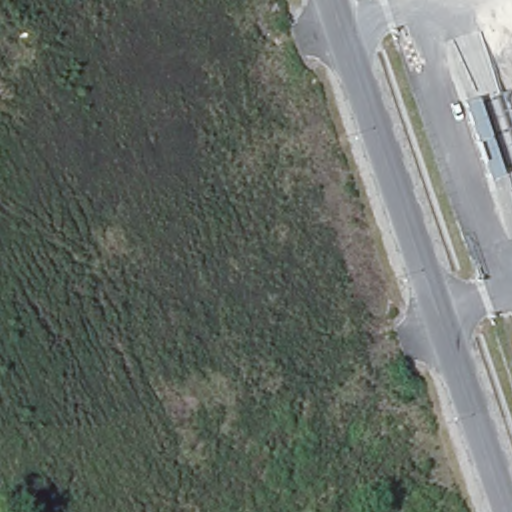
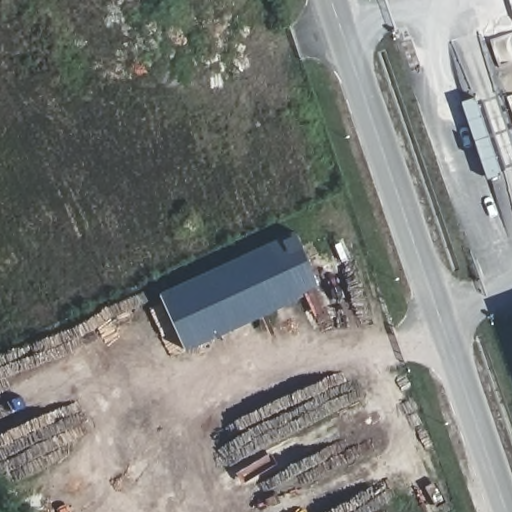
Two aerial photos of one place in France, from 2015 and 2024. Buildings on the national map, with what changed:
new [(474,95),(500,173),(487,178),(460,100),(474,95)]
new [(290,243),(296,257),(305,253),(322,289),(190,350),(167,300),(290,243)]

